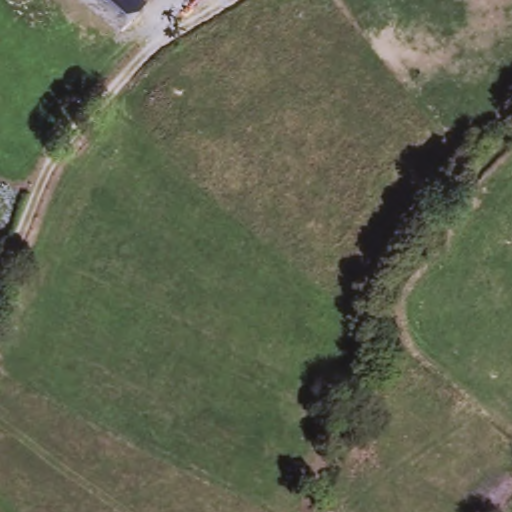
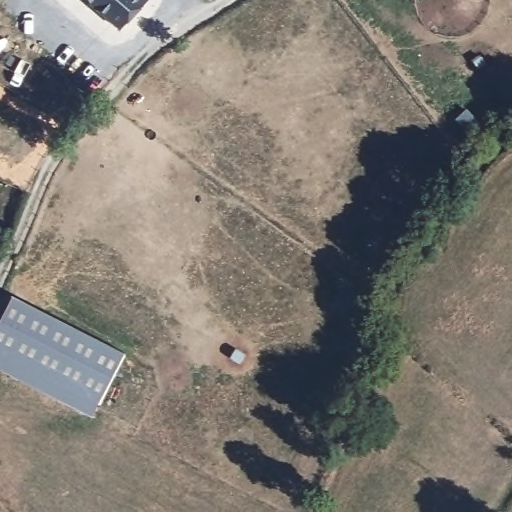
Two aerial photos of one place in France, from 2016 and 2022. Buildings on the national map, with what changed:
demolished [(83,0),(147,0),(148,2),(117,32),(83,0)]
new [(95,0),(148,0),(123,26),(95,0)]
new [(14,305),(126,365),(98,415),(0,362),(0,330),(14,305)]

